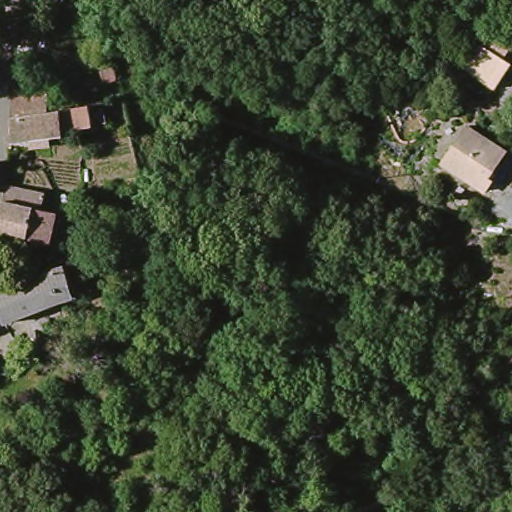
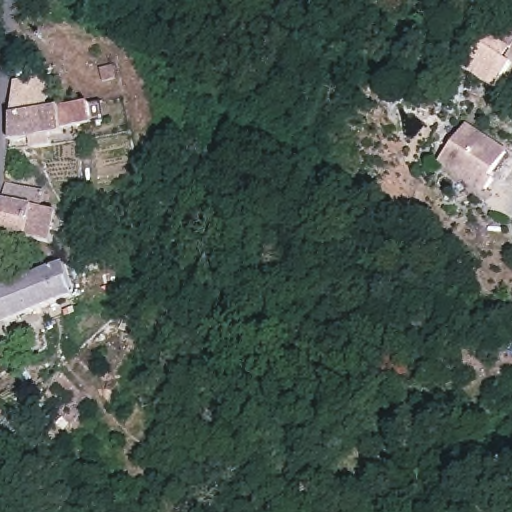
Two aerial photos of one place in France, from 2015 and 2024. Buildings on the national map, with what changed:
unchanged [(36,45),(26,45),(26,36),(36,32),(36,45)]
unchanged [(488,38),(512,57),(512,68),(493,92),(465,70),(488,38)]
unchanged [(112,72),(115,84),(104,85),(102,74),(112,72)]
unchanged [(91,124),(61,127),(62,136),(10,143),(13,118),(17,83),(61,79),(62,88),(59,88),(60,111),(90,106),(91,124)]
unchanged [(487,191),(448,161),(475,128),(509,155),(490,179),(494,182),(487,191)]
unchanged [(5,187),(43,196),(40,213),(54,216),(46,243),(0,233),(0,210),(1,205),(5,187)]
unchanged [(5,326),(0,301),(0,279),(27,271),(30,278),(68,268),(75,298),(5,326)]

